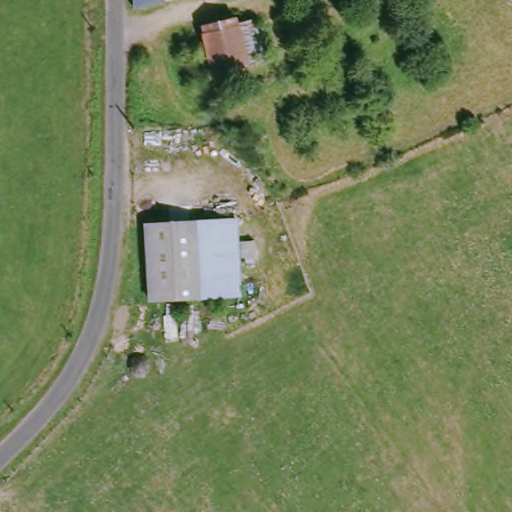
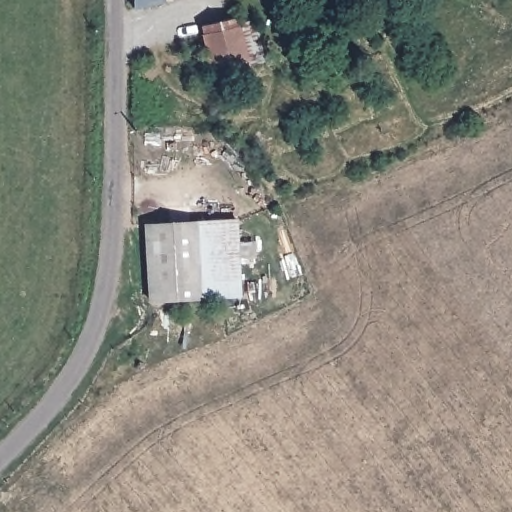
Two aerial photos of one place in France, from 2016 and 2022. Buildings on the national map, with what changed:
unchanged [(136,10),(135,0),(176,0),(136,10)]
unchanged [(213,75),(203,36),(256,22),(265,61),(213,75)]
unchanged [(241,221),(241,236),(242,299),(199,299),(198,222),(231,221),(241,221)]
unchanged [(199,299),(151,300),(148,223),(198,222),(199,299)]

